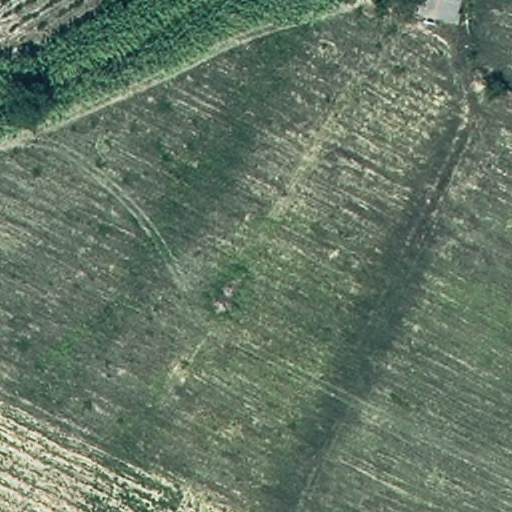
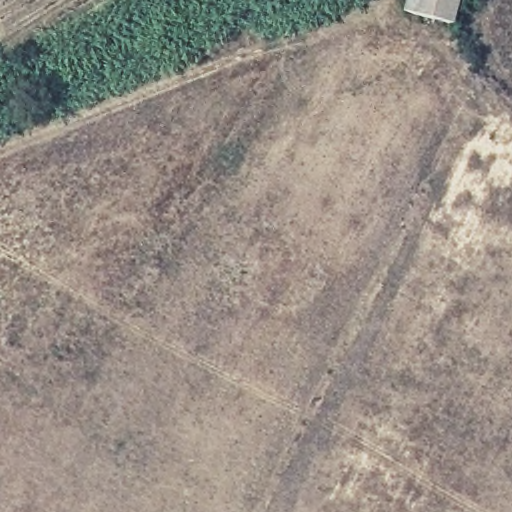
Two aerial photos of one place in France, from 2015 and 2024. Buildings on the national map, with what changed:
unchanged [(402,11),(405,0),(457,0),(451,23),(402,11)]

